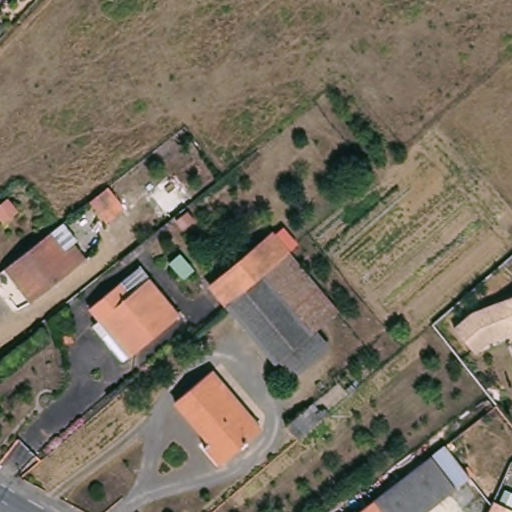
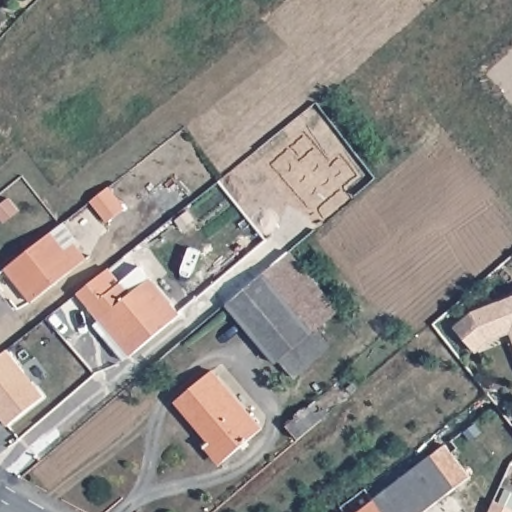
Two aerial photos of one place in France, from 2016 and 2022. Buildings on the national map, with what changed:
unchanged [(111,197),(95,209),(89,201),(105,189),(111,197)]
unchanged [(10,268),(55,232),(67,223),(80,240),(71,248),(84,264),(36,302),(10,268)]
unchanged [(215,286),(277,233),(279,235),(287,229),(298,243),(291,249),(294,252),(231,305),(215,286)]
unchanged [(303,295),(257,335),(231,305),(294,252),(319,282),(303,295)]
unchanged [(133,355),(127,360),(98,325),(104,319),(94,308),(125,282),(145,265),(154,277),(185,313),(138,352),(134,356),(133,355)]
unchanged [(342,310),(318,330),(283,360),(280,363),(257,335),(303,295),(319,282),(342,310)]
unchanged [(475,353),(454,326),(476,308),(512,294),(512,331),(493,339),(475,353)]
unchanged [(318,330),(332,347),(298,377),(283,360),(318,330)]
new [(5,349),(43,396),(6,425),(0,418),(0,353),(5,349)]
unchanged [(208,446),(212,443),(214,441),(180,402),(217,370),(266,428),(227,461),(224,464),(208,446)]
unchanged [(298,440),(286,426),(312,404),(318,410),(321,407),(328,414),(298,440)]
unchanged [(451,440),(457,447),(451,452),(469,476),(470,476),(424,512),(359,512),(451,440)]
unchanged [(512,492),(512,512),(489,512),(494,500),(499,502),(505,488),(512,492)]

